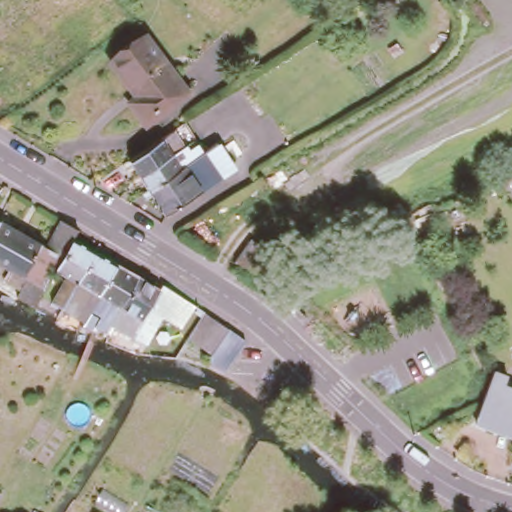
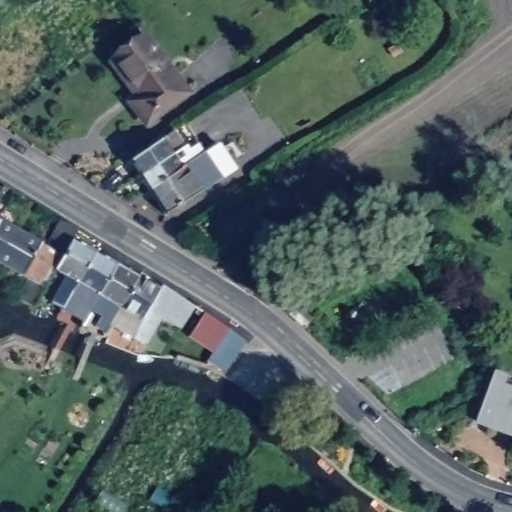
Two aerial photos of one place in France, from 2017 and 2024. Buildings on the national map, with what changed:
unchanged [(133,0),(149,0),(150,1),(141,9),(133,0)]
unchanged [(132,100),(139,95),(123,74),(112,58),(130,45),(149,33),(190,89),(148,120),(132,100)]
unchanged [(152,186),(142,171),(133,156),(180,124),(190,140),(176,149),(181,158),(205,143),(200,133),(190,118),(204,109),(225,140),(222,142),(237,166),(167,210),(152,186)]
unchanged [(0,218),(0,213),(2,214),(0,218)]
unchanged [(47,242),(65,215),(82,226),(79,233),(60,264),(39,302),(36,303),(18,292),(29,276),(0,258),(0,218),(2,214),(47,242)]
unchanged [(75,306),(67,301),(63,306),(58,303),(60,299),(55,295),(70,270),(60,264),(79,233),(100,246),(81,277),(77,284),(85,289),(75,306)]
unchanged [(247,233),(282,253),(270,278),(232,259),(247,233)]
unchanged [(82,315),(84,311),(80,309),(94,284),(81,277),(100,246),(122,260),(104,291),(87,319),(82,315)]
unchanged [(112,334),(107,331),(102,327),(104,323),(100,320),(114,297),(104,291),(122,260),(142,272),(124,303),(110,326),(115,329),(112,334)]
unchanged [(125,324),(135,308),(124,303),(142,272),(162,284),(165,279),(179,288),(165,309),(147,339),(125,324)]
unchanged [(208,354),(196,345),(187,339),(175,358),(162,355),(192,306),(202,313),(200,317),(210,325),(222,333),(208,354)]
unchanged [(240,346),(225,366),(214,358),(227,338),(240,346)]
unchanged [(490,374),(505,379),(503,384),(512,387),(512,431),(490,425),(475,420),(482,397),(487,380),(490,374)]

